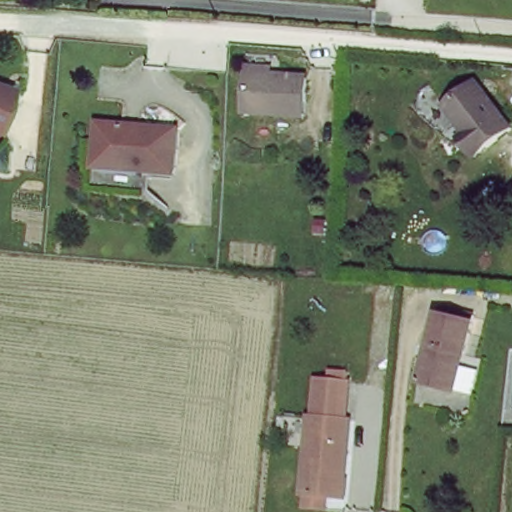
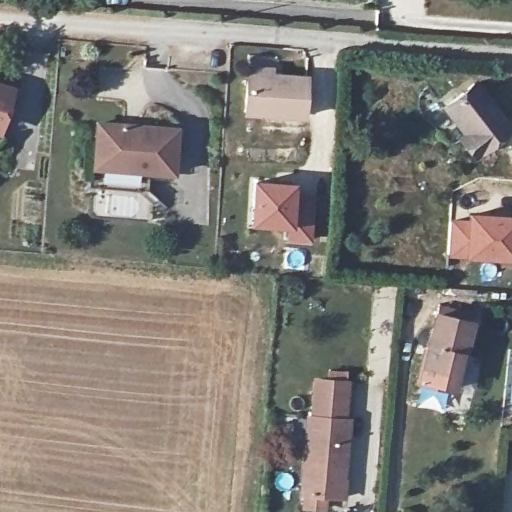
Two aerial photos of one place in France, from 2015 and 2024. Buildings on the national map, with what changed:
unchanged [(306,77),(303,117),(245,112),(248,67),(272,68),(271,74),(306,77)]
unchanged [(476,82),(509,126),(474,155),(459,137),(464,132),(444,106),(476,82)]
unchanged [(10,94),(0,122),(0,91),(10,94)]
unchanged [(96,121),(123,124),(123,129),(133,130),(133,125),(175,129),(171,172),(147,171),(92,165),(96,121)]
unchanged [(145,191),(90,187),(92,165),(147,171),(145,191)]
new [(252,179),(301,184),(298,202),(313,202),(311,242),(285,241),(285,229),(248,226),(252,179)]
new [(465,217),(466,212),(512,214),(512,260),(446,256),(449,217),(465,217)]
unchanged [(429,349),(439,310),(474,318),(465,357),(461,357),(452,395),(418,386),(424,357),(426,348),(429,349)]
unchanged [(313,414),(317,377),(348,380),(345,417),(349,417),(345,494),(327,493),(327,505),(303,503),(309,413),(313,414)]

